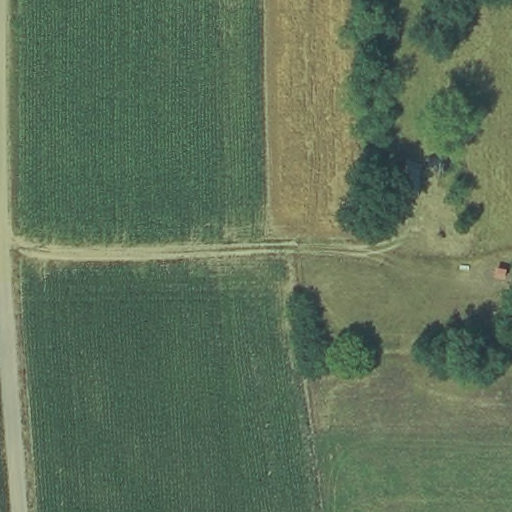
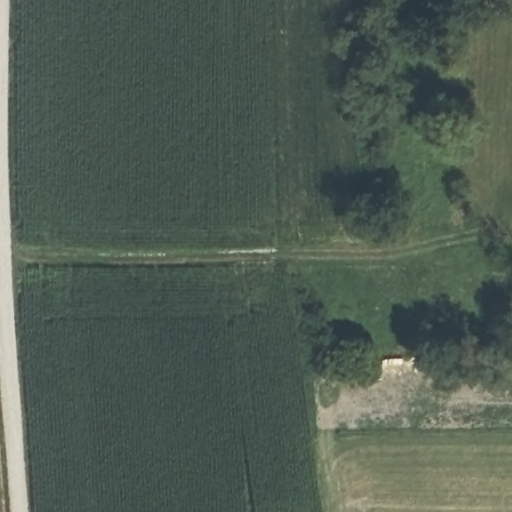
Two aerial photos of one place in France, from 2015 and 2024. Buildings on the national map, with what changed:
unchanged [(418,212),(395,212),(393,158),(417,158),(418,212)]

